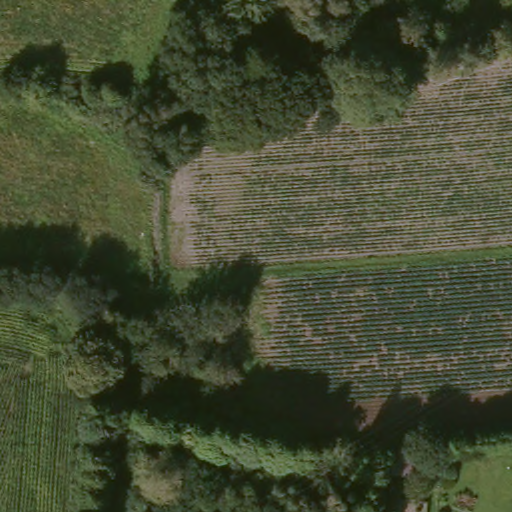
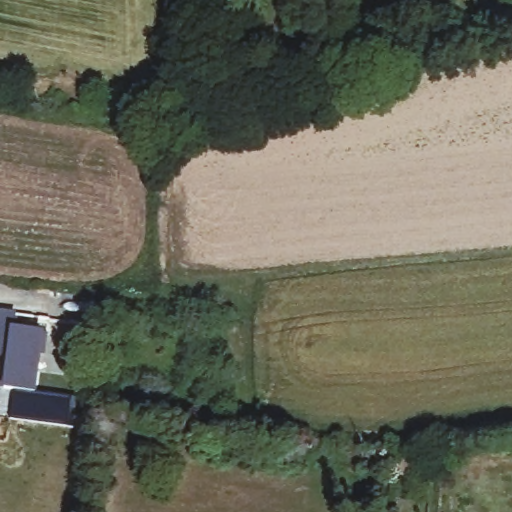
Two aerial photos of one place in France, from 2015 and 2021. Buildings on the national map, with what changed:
new [(15,326),(45,330),(38,389),(69,393),(66,424),(8,416),(11,389),(2,388),(6,355),(0,354),(0,308),(19,310),(15,326)]
unchanged [(389,439),(408,442),(404,472),(384,469),(389,439)]

